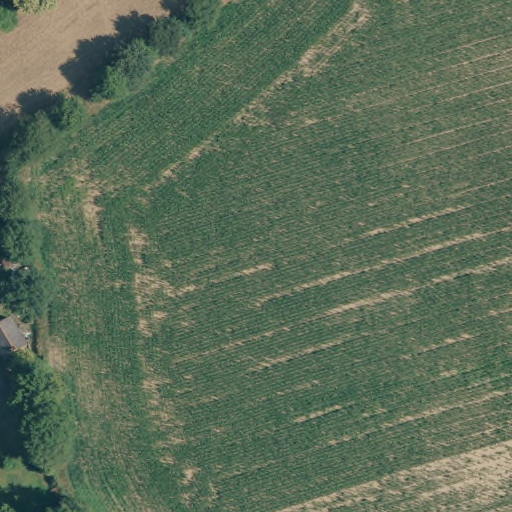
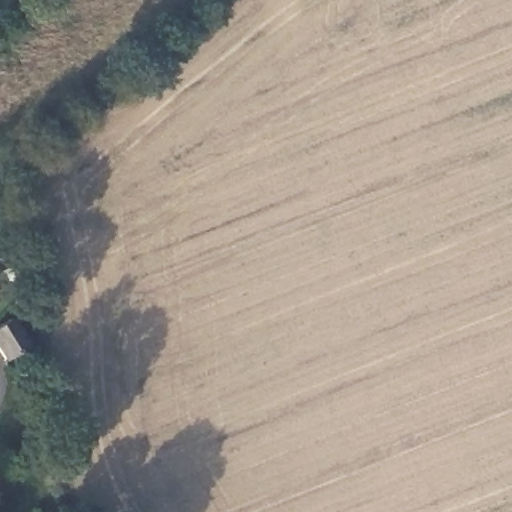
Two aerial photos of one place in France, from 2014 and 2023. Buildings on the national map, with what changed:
unchanged [(34,350),(36,353),(34,354),(26,358),(34,373),(23,379),(17,368),(14,369),(0,345),(0,332),(20,321),(34,350)]

